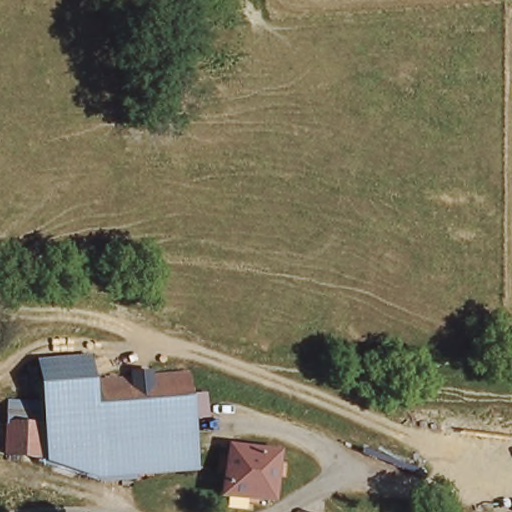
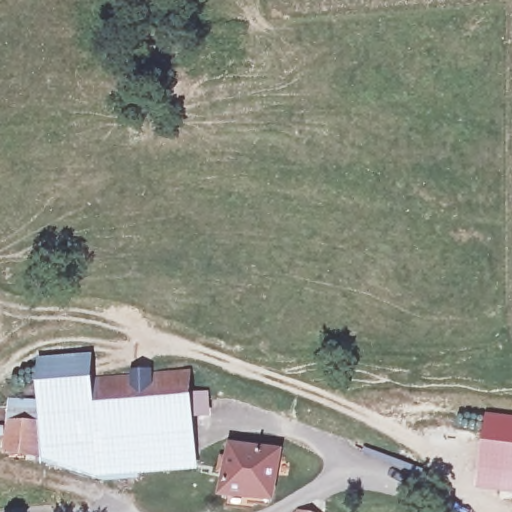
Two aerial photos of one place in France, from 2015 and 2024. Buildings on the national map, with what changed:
unchanged [(10,440),(10,427),(42,426),(44,358),(97,358),(98,380),(100,380),(192,380),(191,412),(192,472),(103,476),(46,455),(10,455),(10,440)]
new [(487,413),(512,416),(512,493),(479,489),(487,413)]
unchanged [(272,475),(270,491),(226,487),(224,446),(274,450),(272,475)]
unchanged [(293,507),(307,512),(291,512),(291,511),(293,507)]

